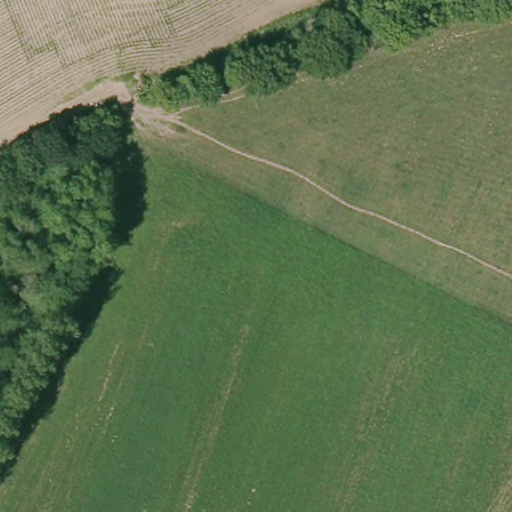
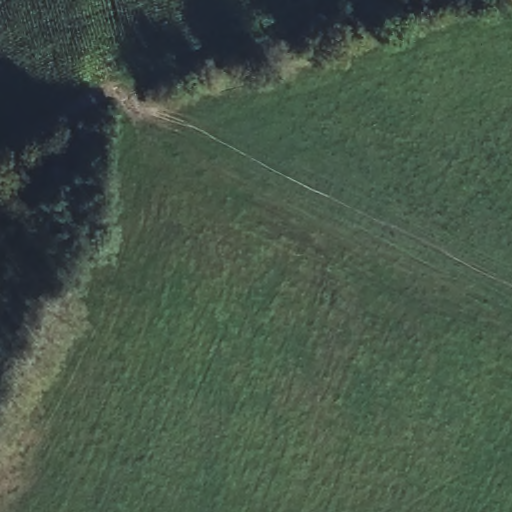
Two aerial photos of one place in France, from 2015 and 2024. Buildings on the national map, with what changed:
[]

